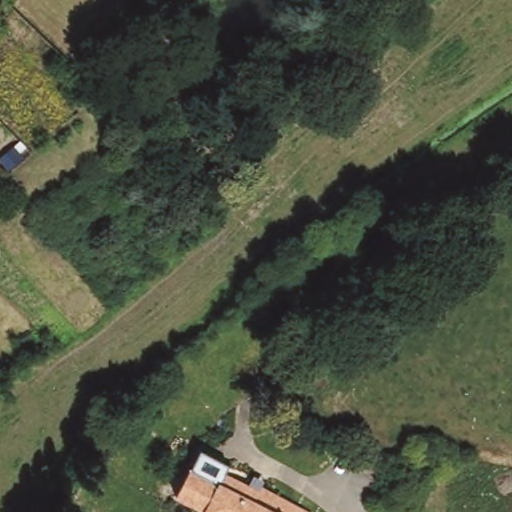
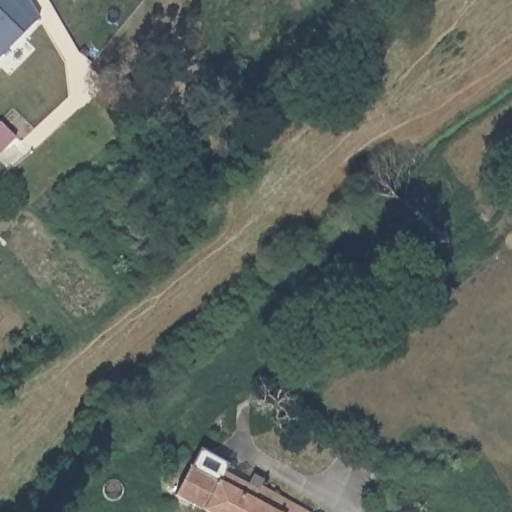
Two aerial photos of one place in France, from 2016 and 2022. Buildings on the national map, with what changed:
new [(39,16),(0,59),(0,0),(29,0),(39,16)]
unchanged [(198,451),(237,469),(234,475),(258,487),(260,485),(314,512),(202,512),(176,496),(190,467),(198,451)]
unchanged [(370,455),(383,460),(378,474),(365,470),(370,455)]
unchanged [(393,491),(393,512),(369,512),(369,491),(393,491)]

